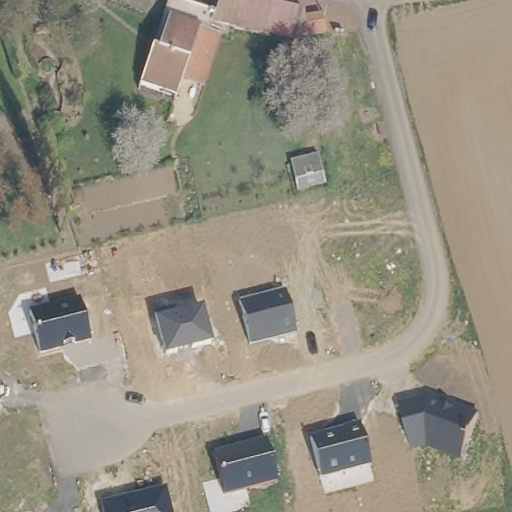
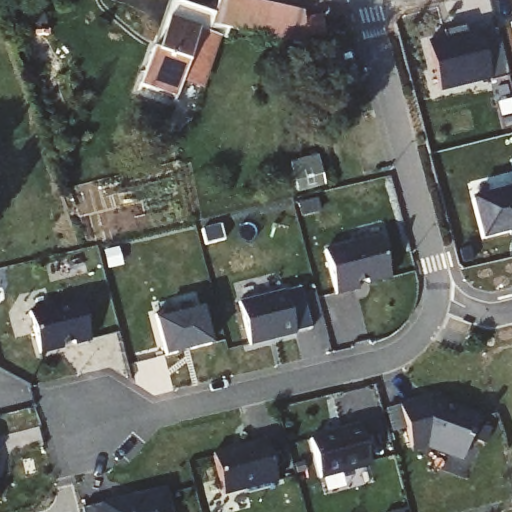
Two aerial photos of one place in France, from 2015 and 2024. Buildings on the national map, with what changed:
unchanged [(196,33),(181,78),(176,98),(141,86),(153,51),(159,54),(176,4),(203,12),(208,0),(239,0),(286,14),(304,18),(311,58),(216,28),(212,38),(196,33)]
new [(512,19),(512,30),(509,20),(512,19)]
new [(443,34),(441,27),(464,22),(465,29),(477,26),(478,29),(494,25),(507,74),(488,78),(488,76),(438,88),(426,39),(443,34)]
unchanged [(196,33),(212,38),(218,40),(203,85),(181,78),(196,33)]
unchanged [(297,196),(290,162),(319,155),(324,185),(297,196)]
new [(512,186),(512,228),(480,236),(469,197),(512,186)]
new [(324,249),(380,235),(391,279),(359,286),(359,290),(336,295),(324,249)]
new [(110,270),(106,253),(120,250),(124,267),(110,270)]
unchanged [(286,294),(296,338),(248,348),(238,305),(286,294)]
unchanged [(80,301),(90,344),(73,348),(71,344),(61,346),(60,350),(36,356),(27,313),(80,301)]
unchanged [(203,309),(211,345),(163,356),(155,321),(203,309)]
unchanged [(434,400),(479,417),(459,462),(425,446),(411,450),(399,408),(434,400)]
unchanged [(358,426),(369,468),(320,480),(309,439),(358,426)]
unchanged [(266,442),(276,485),(222,497),(213,455),(266,442)]
unchanged [(171,512),(104,512),(103,505),(166,489),(171,512)]

